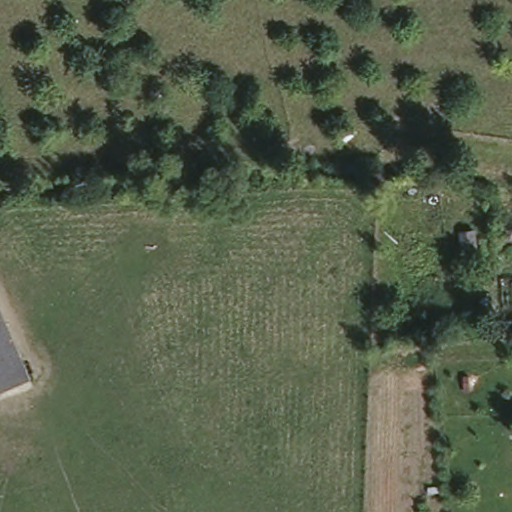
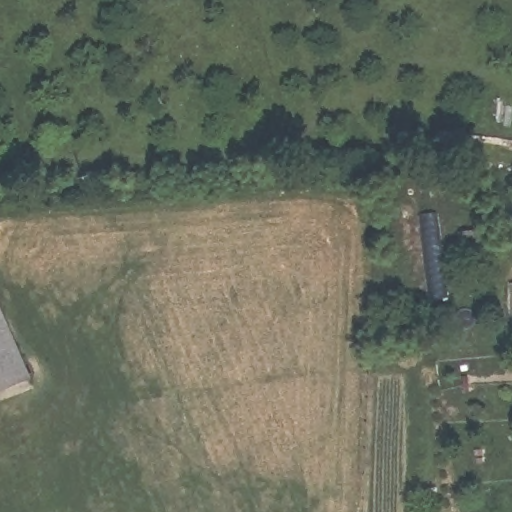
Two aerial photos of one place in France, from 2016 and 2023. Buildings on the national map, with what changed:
unchanged [(30,378),(0,390),(0,306),(30,378)]

